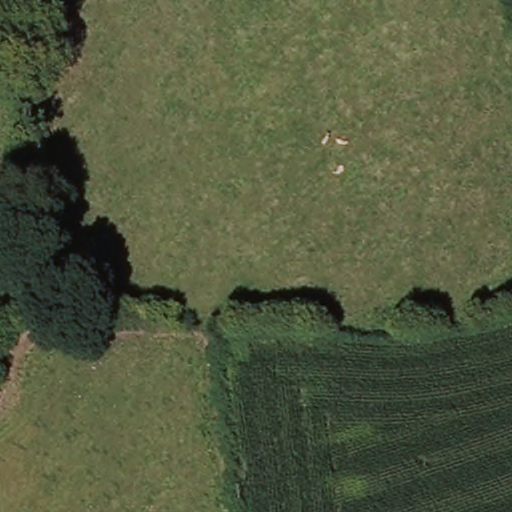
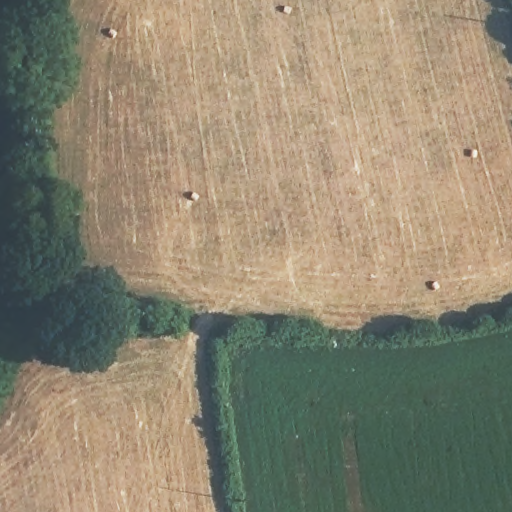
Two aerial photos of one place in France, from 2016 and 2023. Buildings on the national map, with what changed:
[]

